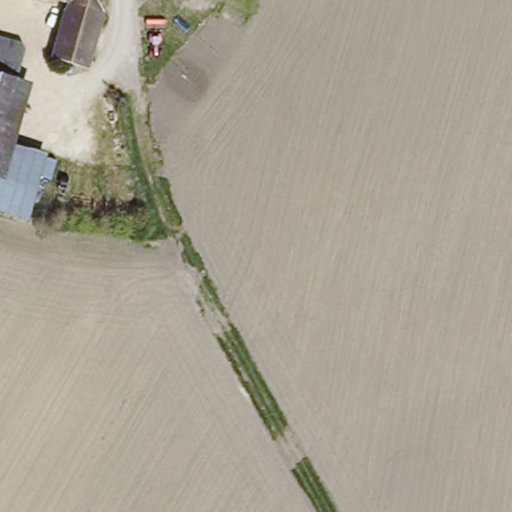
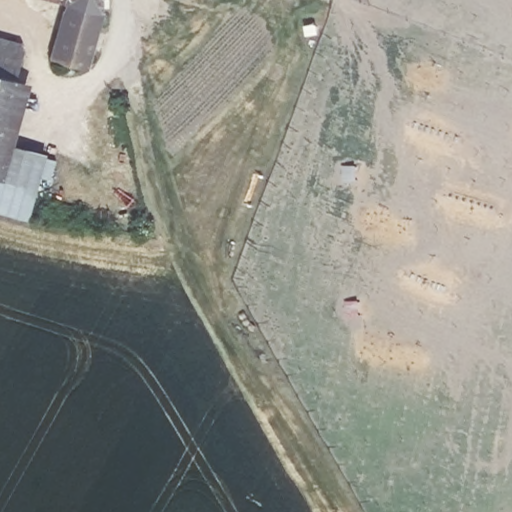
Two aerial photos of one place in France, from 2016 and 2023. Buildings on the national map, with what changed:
unchanged [(85,75),(47,63),(62,8),(40,0),(102,0),(101,15),(85,75)]
unchanged [(16,77),(26,80),(18,108),(0,103),(0,40),(25,47),(16,77)]
unchanged [(7,146),(0,170),(0,103),(18,108),(7,146)]
unchanged [(48,157),(31,219),(10,214),(0,210),(0,170),(7,146),(48,157)]

